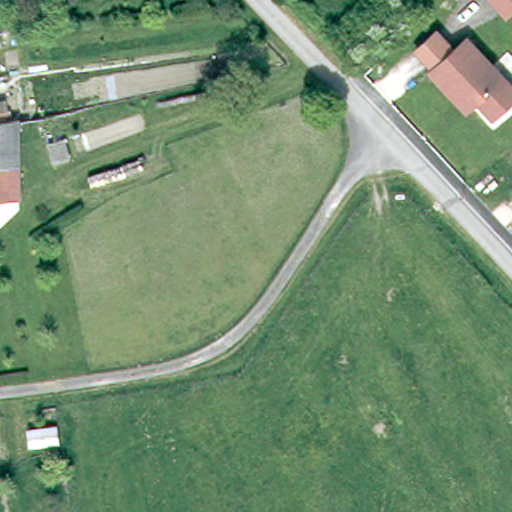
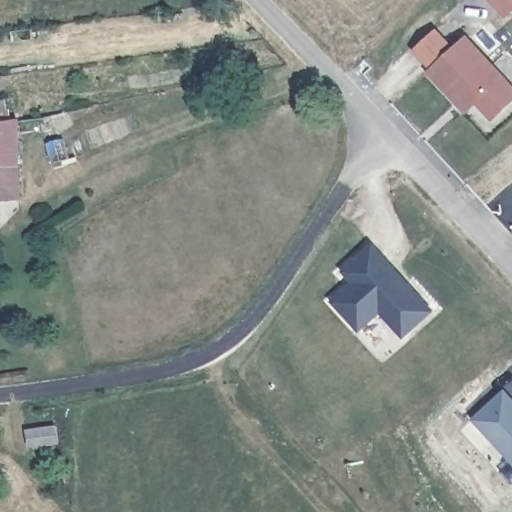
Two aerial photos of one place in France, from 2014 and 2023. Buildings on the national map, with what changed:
unchanged [(512,10),(507,14),(495,0),(512,0),(512,10)]
unchanged [(435,70),(438,67),(421,49),(443,29),(460,48),(473,36),(512,80),(512,105),(498,117),(482,100),(471,110),(461,100),(435,70)]
unchanged [(17,122),(17,175),(0,175),(0,99),(5,99),(6,112),(9,112),(10,120),(16,119),(17,122)]
unchanged [(17,175),(17,197),(0,198),(0,175),(17,175)]
new [(381,313),(360,331),(331,299),(352,281),(342,270),(375,242),(435,309),(404,337),(381,313)]
new [(512,485),(460,429),(505,387),(512,396),(512,485)]

